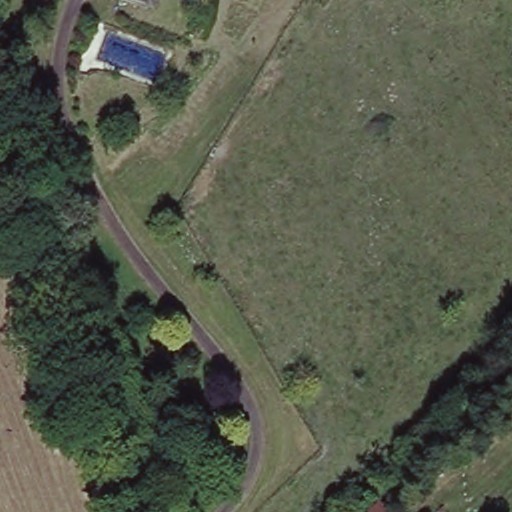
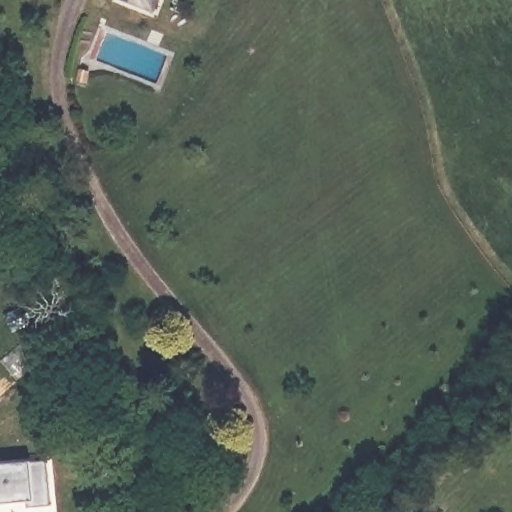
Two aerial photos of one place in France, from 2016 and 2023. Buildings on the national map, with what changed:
unchanged [(116,1),(116,0),(160,0),(155,15),(116,1)]
new [(48,465),(52,510),(28,511),(29,506),(0,508),(0,468),(48,465)]
new [(377,512),(370,512),(374,508),(377,512)]

